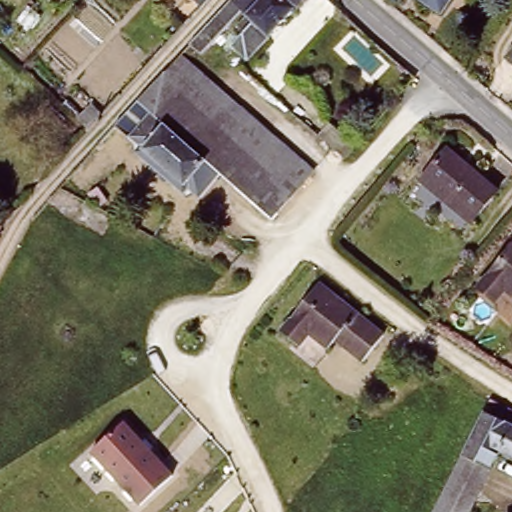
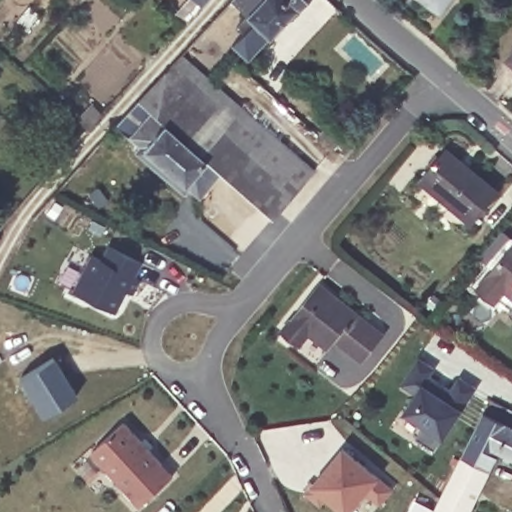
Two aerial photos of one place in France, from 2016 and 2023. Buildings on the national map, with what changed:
unchanged [(202,7),(194,0),(208,0),(202,7)]
unchanged [(250,60),(235,47),(246,35),(240,30),(250,17),(245,12),(235,1),(236,0),(307,0),(250,60)]
unchanged [(443,19),(416,0),(457,0),(443,19)]
unchanged [(512,55),(512,71),(505,64),(512,55)]
unchanged [(177,60),(187,71),(197,60),(203,66),(183,88),(270,165),(290,142),(318,167),(276,215),(227,170),(205,195),(120,123),(177,60)]
unchanged [(290,142),(270,165),(183,88),(203,66),(290,142)]
unchanged [(419,180),(442,150),(493,190),(470,220),(419,180)]
new [(142,282),(133,295),(125,290),(115,314),(72,292),(90,254),(100,259),(107,244),(140,263),(135,275),(142,282)]
unchanged [(499,302),(481,287),(512,249),(512,293),(508,290),(499,302)]
unchanged [(332,339),(325,349),(304,333),(294,346),(277,332),(313,285),(379,333),(359,359),(332,339)]
new [(42,413),(20,377),(54,357),(75,393),(42,413)]
new [(432,370),(427,378),(435,383),(445,390),(450,392),(458,379),(475,389),(435,453),(415,440),(423,427),(403,415),(415,396),(400,387),(417,360),(432,370)]
unchanged [(469,512),(434,512),(492,400),(492,401),(512,412),(512,459),(499,452),(469,512)]
unchanged [(123,418),(172,471),(140,503),(91,449),(123,418)]
new [(349,512),(343,512),(325,496),(319,505),(305,493),(310,486),(343,446),(378,477),(392,489),(378,504),(362,494),(349,512)]
new [(434,511),(434,512),(407,512),(412,501),(434,511)]

